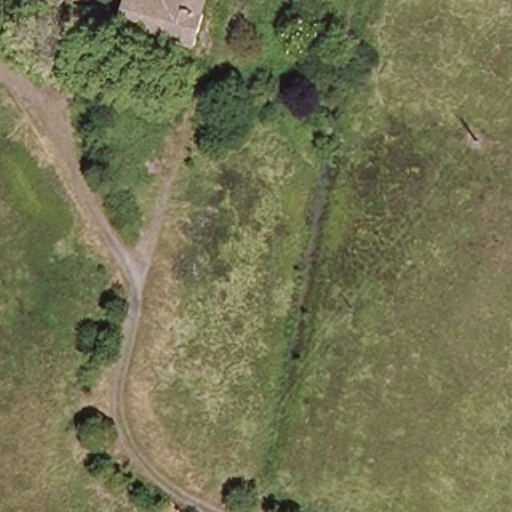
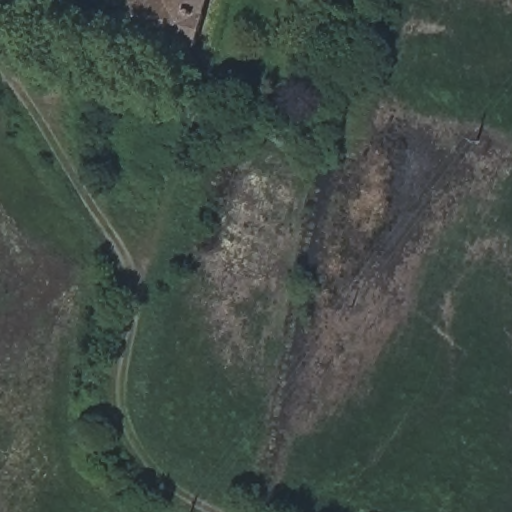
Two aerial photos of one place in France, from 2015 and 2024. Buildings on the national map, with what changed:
unchanged [(49,0),(205,0),(192,44),(49,0)]

